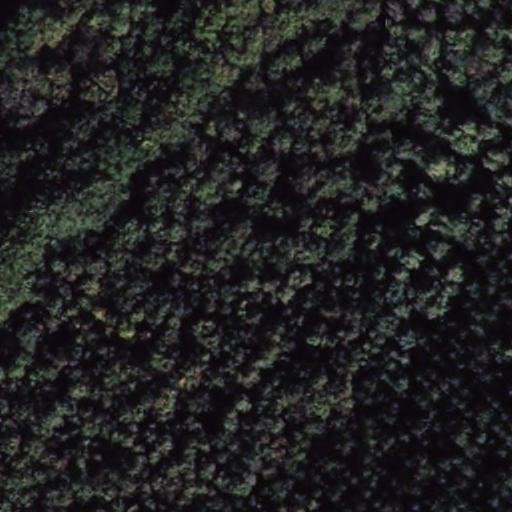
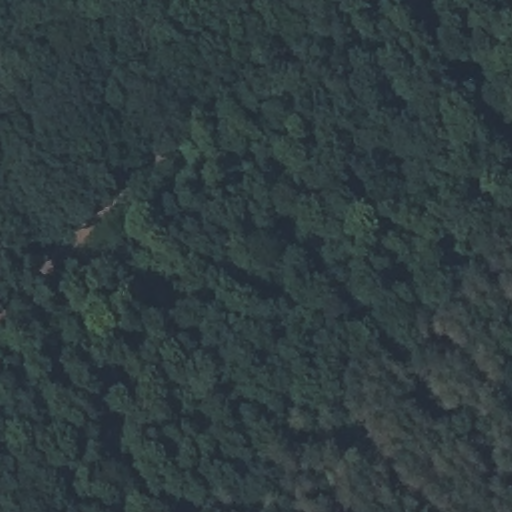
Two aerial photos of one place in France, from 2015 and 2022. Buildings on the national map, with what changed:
[]

